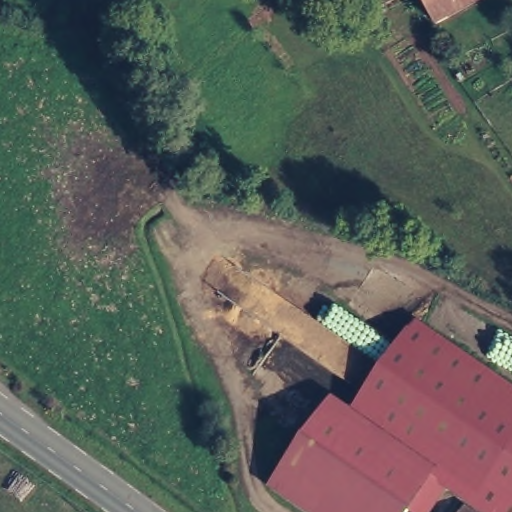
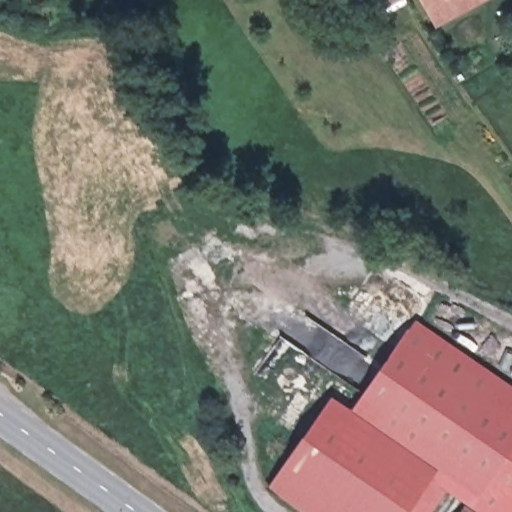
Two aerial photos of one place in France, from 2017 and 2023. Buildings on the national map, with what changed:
unchanged [(376,6),(373,0),(390,0),(376,6)]
unchanged [(437,2),(443,11),(430,20),(420,0),(441,0),(437,2)]
unchanged [(408,512),(294,512),(261,491),(325,397),(342,408),(412,315),(512,383),(512,512),(483,512),(465,500),(430,480),(408,512)]
unchanged [(483,512),(457,512),(465,500),(483,512)]

